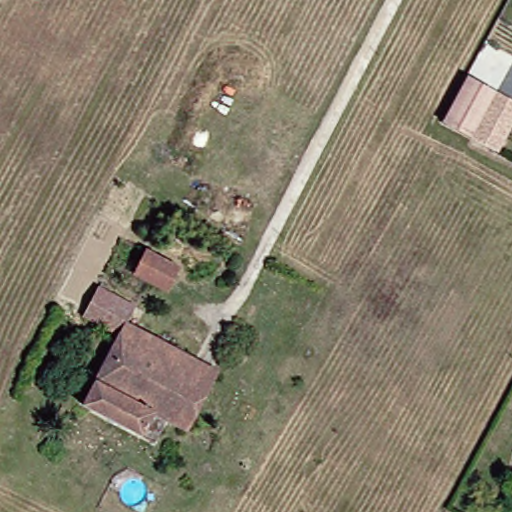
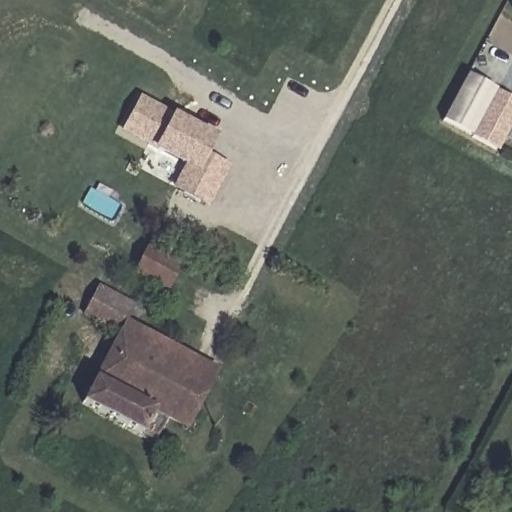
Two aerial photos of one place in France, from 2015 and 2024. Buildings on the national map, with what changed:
unchanged [(485,147),(460,133),(484,89),(510,102),(485,147)]
new [(209,139),(199,157),(222,168),(203,203),(172,187),(184,164),(120,130),(136,100),(209,139)]
unchanged [(167,268),(156,290),(125,273),(137,252),(167,268)]
unchanged [(75,400),(109,334),(79,318),(70,314),(87,282),(95,286),(123,301),(114,318),(180,354),(209,369),(179,426),(157,414),(145,437),(135,432),(75,400)]

